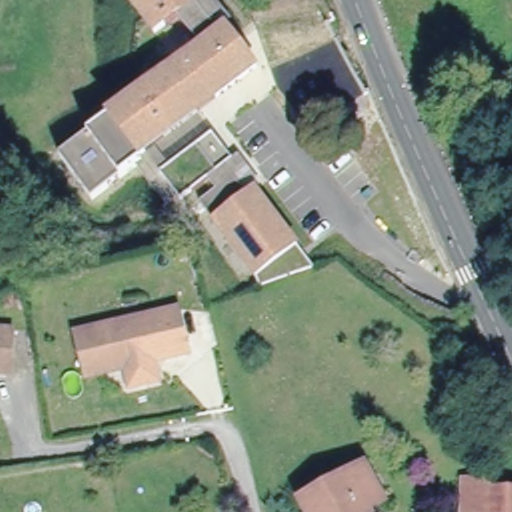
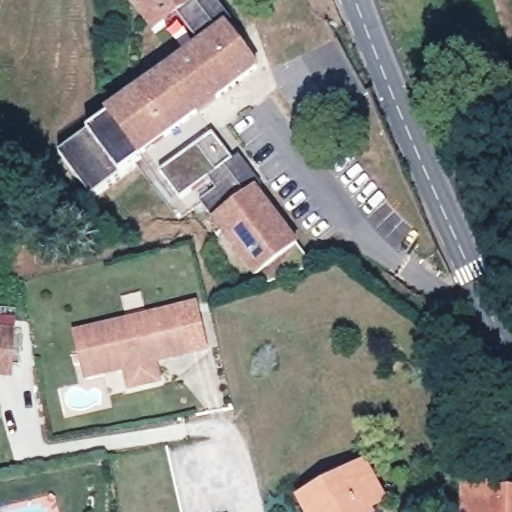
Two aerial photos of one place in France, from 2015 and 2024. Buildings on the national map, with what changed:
unchanged [(93,199),(61,158),(203,48),(179,17),(156,36),(129,0),(206,0),(260,69),(200,116),(147,156),(93,199)]
unchanged [(328,37),(367,108),(356,114),(359,120),(340,130),(336,125),(319,134),(280,63),(328,37)]
unchanged [(263,287),(258,277),(203,205),(220,192),(211,181),(183,202),(163,176),(215,135),(317,267),(263,287)]
unchanged [(132,376),(130,366),(91,374),(82,330),(163,313),(185,308),(187,318),(194,352),(171,357),(160,359),(162,370),(164,379),(155,381),(142,383),(134,385),(132,376)]
unchanged [(0,329),(17,331),(14,365),(13,375),(0,373),(0,329)]
unchanged [(305,496),(368,464),(386,499),(370,507),(373,512),(314,512),(305,496)]
unchanged [(488,477),(488,486),(488,512),(463,512),(463,476),(488,477)]
unchanged [(512,487),(512,512),(488,512),(488,486),(512,487)]

